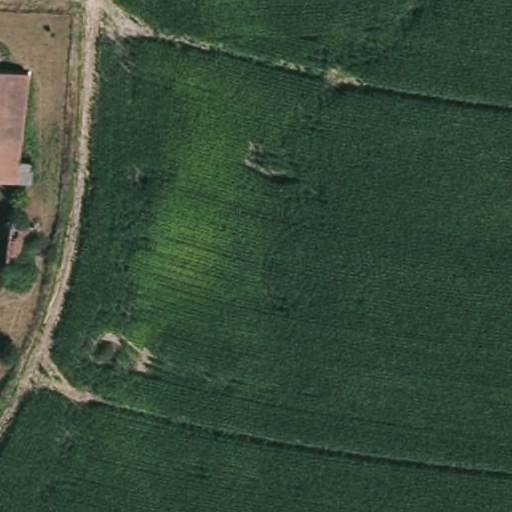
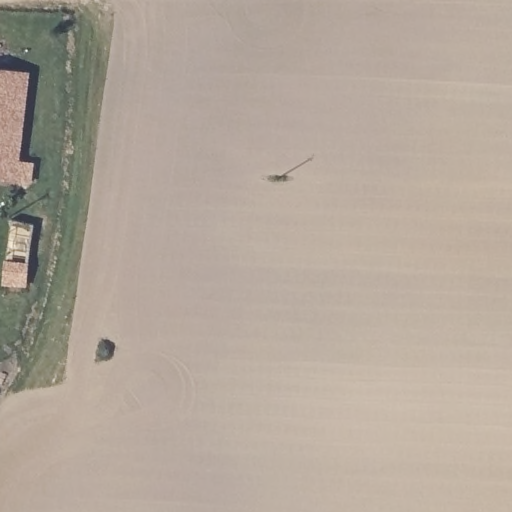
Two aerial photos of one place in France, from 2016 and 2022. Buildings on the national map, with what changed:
unchanged [(10,181),(0,180),(0,69),(23,71),(13,161),(27,163),(25,184),(10,181)]
unchanged [(25,290),(2,290),(10,225),(33,227),(25,290)]

